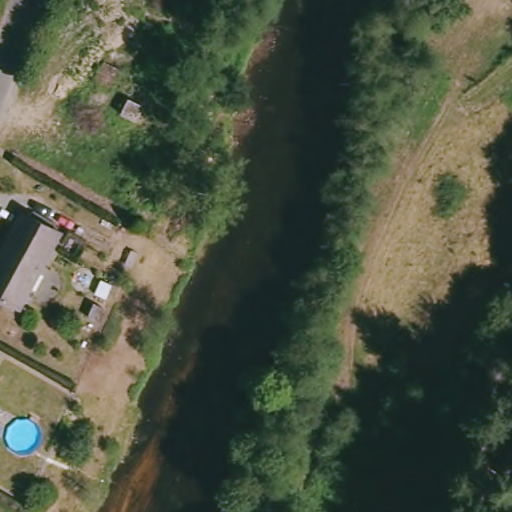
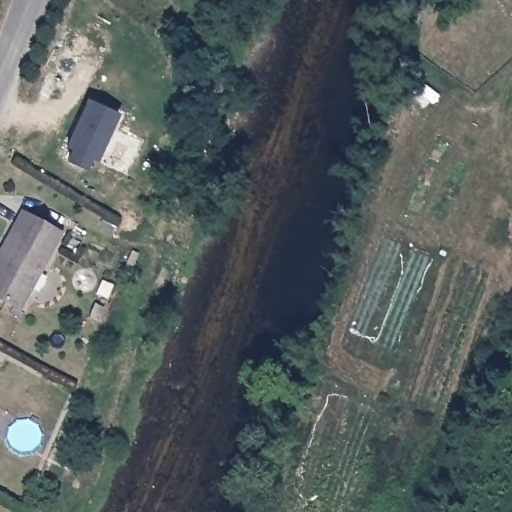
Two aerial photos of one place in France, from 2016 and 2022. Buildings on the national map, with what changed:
new [(121,110),(93,175),(59,164),(88,100),(121,110)]
demolished [(152,115),(144,131),(129,124),(136,108),(152,115)]
unchanged [(16,306),(0,297),(0,246),(20,210),(58,230),(16,306)]

